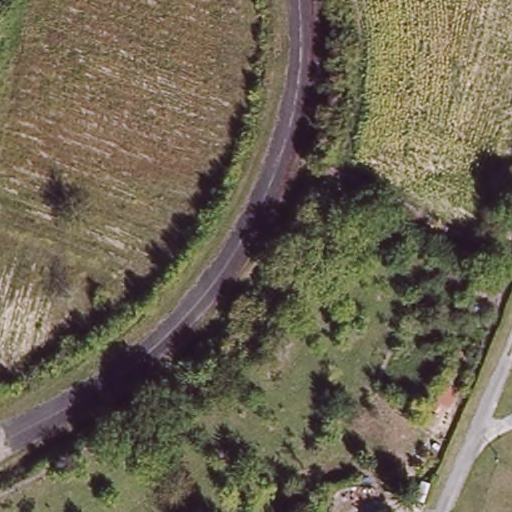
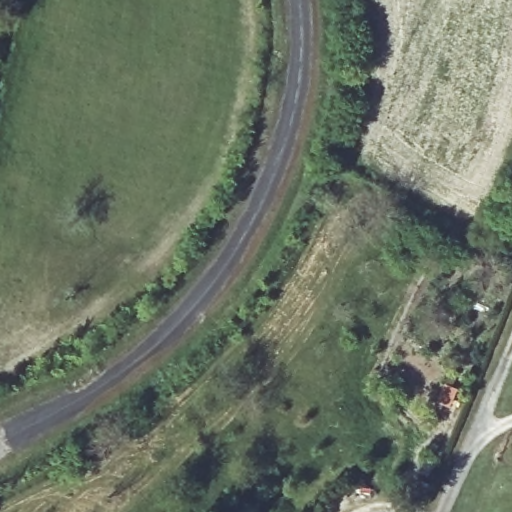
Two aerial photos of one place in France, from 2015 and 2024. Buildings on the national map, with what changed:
[]

